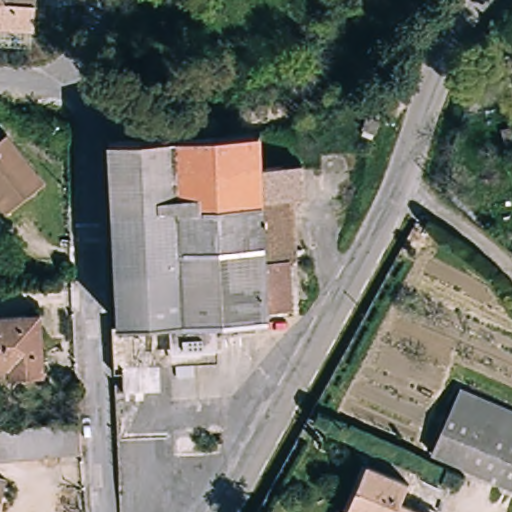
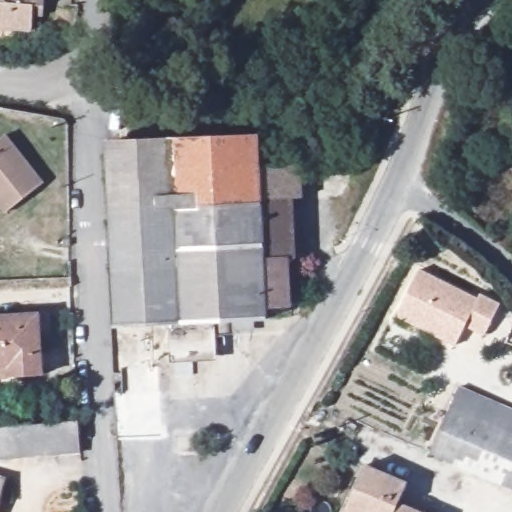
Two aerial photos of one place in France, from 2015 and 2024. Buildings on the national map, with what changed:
unchanged [(0,28),(0,0),(42,0),(41,6),(30,6),(27,29),(0,28)]
unchanged [(225,136),(158,140),(157,112),(227,106),(225,136)]
unchanged [(366,124),(362,135),(350,133),(354,121),(366,124)]
unchanged [(293,169),(300,169),(300,175),(301,202),(291,202),(295,263),(287,263),(290,310),(266,312),(266,324),(217,325),(218,355),(170,357),(169,328),(116,329),(108,145),(170,142),(256,138),(258,170),(293,169)]
unchanged [(31,190),(0,218),(0,158),(31,190)]
new [(465,328),(456,347),(396,318),(420,270),(478,299),(480,293),(500,304),(484,337),(465,328)]
unchanged [(39,317),(41,378),(10,379),(0,379),(0,318),(39,317)]
unchanged [(462,389),(512,410),(512,439),(450,413),(462,389)]
unchanged [(450,413),(512,439),(512,494),(429,458),(450,413)]
unchanged [(178,432),(178,419),(192,418),(193,431),(178,432)]
unchanged [(78,434),(78,442),(78,455),(0,455),(0,427),(78,427),(78,434)]
unchanged [(358,464),(367,467),(357,488),(365,493),(355,512),(339,512),(358,464)]
unchanged [(365,493),(357,488),(367,467),(410,484),(401,506),(415,512),(355,512),(365,493)]
unchanged [(6,479),(0,501),(0,478),(6,479)]

